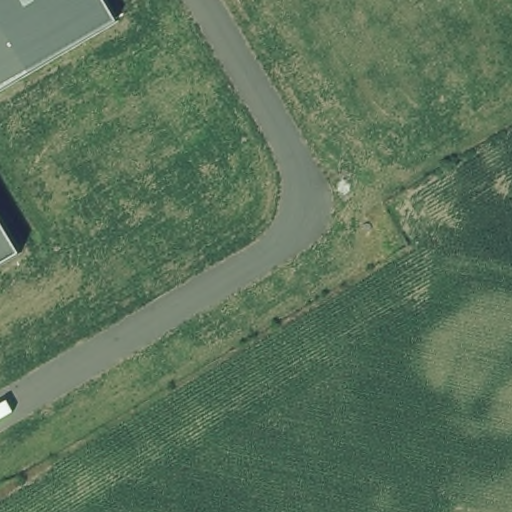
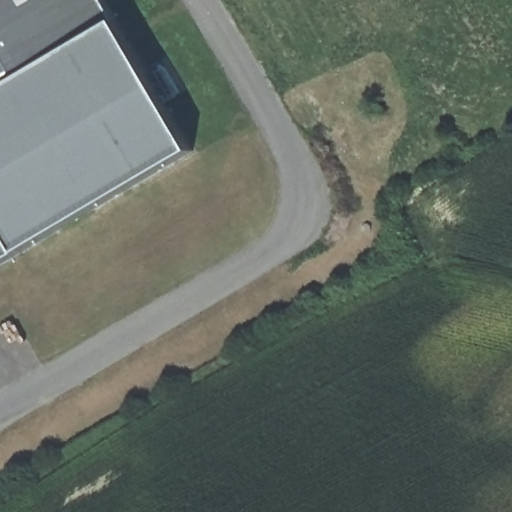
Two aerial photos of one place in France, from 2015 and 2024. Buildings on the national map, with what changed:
unchanged [(0,90),(0,0),(105,0),(118,22),(0,90)]
new [(0,90),(118,22),(194,150),(21,253),(0,217),(0,90)]
unchanged [(0,265),(0,217),(21,253),(0,265)]

